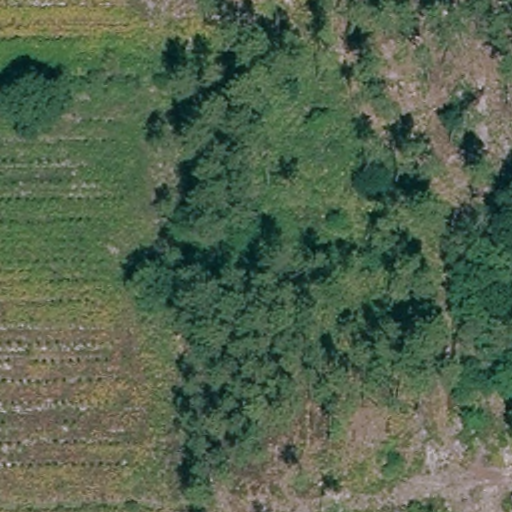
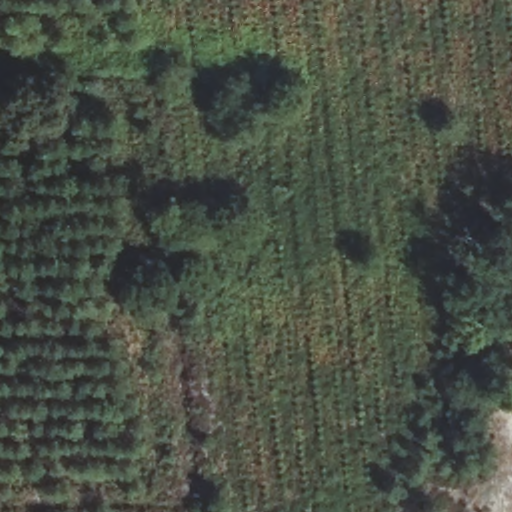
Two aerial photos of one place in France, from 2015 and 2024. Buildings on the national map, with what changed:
[]

